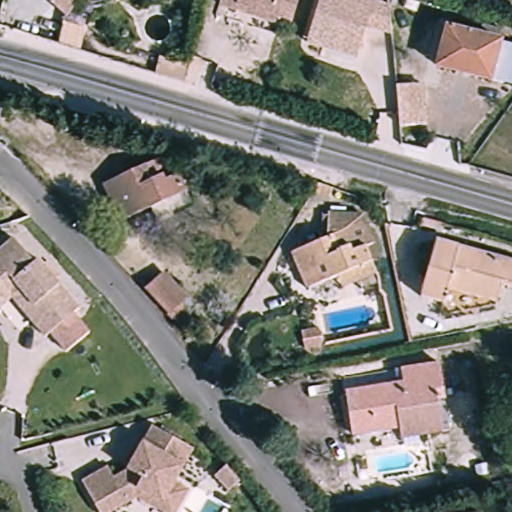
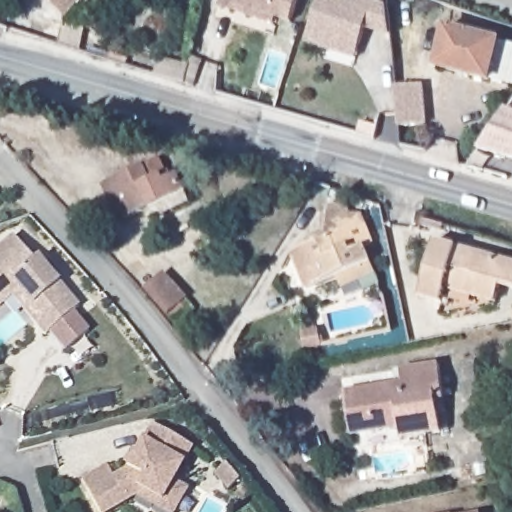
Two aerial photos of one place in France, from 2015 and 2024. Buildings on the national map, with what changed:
unchanged [(87,10),(73,22),(48,0),(81,0),(80,1),(87,10)]
unchanged [(222,11),(225,0),(301,0),(294,21),(280,17),(278,27),(236,15),(222,11)]
unchanged [(391,35),(366,30),(358,58),(306,43),(320,0),(369,0),(389,6),(391,35)]
unchanged [(451,25),(472,33),(476,21),(502,30),(499,42),(512,46),(512,83),(511,88),(439,65),(451,25)]
unchanged [(187,65),(189,57),(203,62),(196,89),(154,75),(160,57),(187,65)]
unchanged [(428,122),(402,126),(398,87),(424,85),(428,122)]
new [(479,151),(507,110),(512,112),(512,160),(479,151)]
unchanged [(103,186),(157,165),(161,174),(168,172),(171,181),(176,179),(183,196),(118,222),(103,186)]
unchanged [(329,177),(328,190),(309,183),(316,173),(329,177)]
unchanged [(341,288),(337,276),(308,287),(294,250),(339,231),(339,205),(364,215),(374,241),(365,245),(371,263),(376,276),(341,288)]
unchanged [(501,285),(495,300),(445,286),(441,302),(419,296),(435,240),(512,262),(512,287),(501,285)]
unchanged [(0,251),(8,245),(30,267),(36,265),(76,312),(43,341),(33,329),(8,302),(0,309),(0,251)]
unchanged [(145,285),(161,270),(183,292),(166,308),(145,285)]
unchanged [(302,345),(319,342),(321,359),(305,361),(302,345)]
unchanged [(433,389),(439,430),(402,435),(400,426),(353,434),(346,388),(400,379),(399,368),(435,362),(439,388),(433,389)]
unchanged [(179,512),(162,512),(138,497),(128,503),(110,512),(97,512),(79,478),(105,465),(112,475),(131,465),(154,424),(189,443),(199,450),(178,483),(184,488),(193,493),(179,512)]

